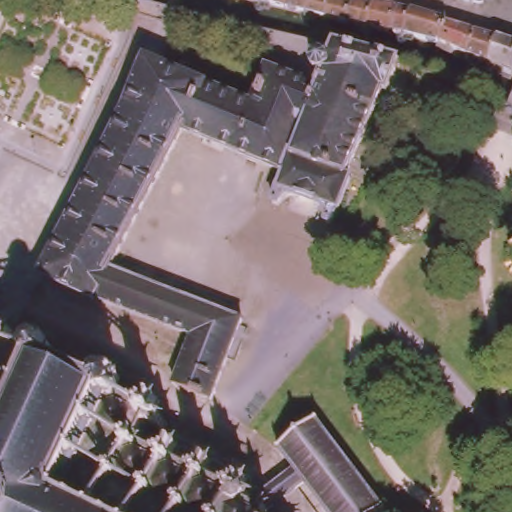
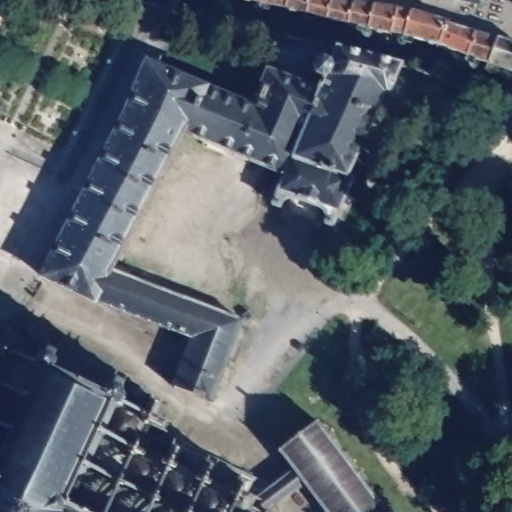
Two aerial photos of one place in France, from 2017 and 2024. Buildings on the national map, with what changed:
unchanged [(342,17),(323,12),(301,7),(281,2),(275,0),(375,0),(392,3),(407,7),(424,12),(441,16),(440,19),(454,23),(468,27),(491,33),(512,39),(512,52),(508,67),(484,58),(463,49),(449,44),(435,39),(418,34),(401,29),(387,25),(343,13),(342,17)]
unchanged [(253,106),(262,84),(255,81),(260,69),(267,73),(269,70),(317,90),(323,76),(315,73),(313,67),(315,61),(322,57),(329,61),(336,46),(401,64),(387,95),(383,94),(346,178),(350,179),(331,225),(326,223),(326,217),(324,213),(323,211),(321,209),(319,207),(303,202),(298,200),(295,199),(292,199),(289,199),(287,199),(285,200),(283,201),(281,203),(279,205),(278,207),(271,205),(283,174),(181,131),(110,269),(94,298),(93,300),(42,276),(124,113),(146,62),(253,106)]
unchanged [(94,298),(110,269),(243,321),(231,351),(193,336),(94,298)]
unchanged [(211,400),(174,386),(193,336),(231,351),(211,400)]
unchanged [(8,341),(0,356),(24,367),(25,363),(29,365),(35,353),(46,358),(41,370),(91,393),(98,392),(102,383),(143,402),(142,404),(151,408),(143,423),(159,430),(154,440),(139,433),(132,448),(134,457),(154,467),(163,450),(171,455),(163,471),(188,483),(196,467),(206,471),(198,488),(222,500),(229,484),(240,489),(234,501),(243,505),(284,474),(330,390),(313,478),(295,489),(265,512),(0,512),(0,337),(8,341)]
unchanged [(338,512),(324,493),(313,478),(330,390),(336,430),(399,512),(338,512)]

